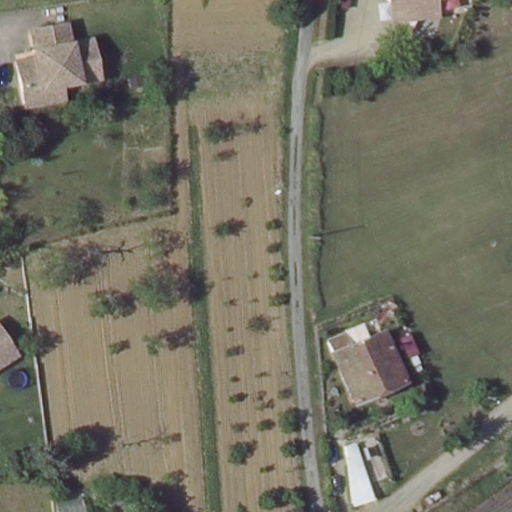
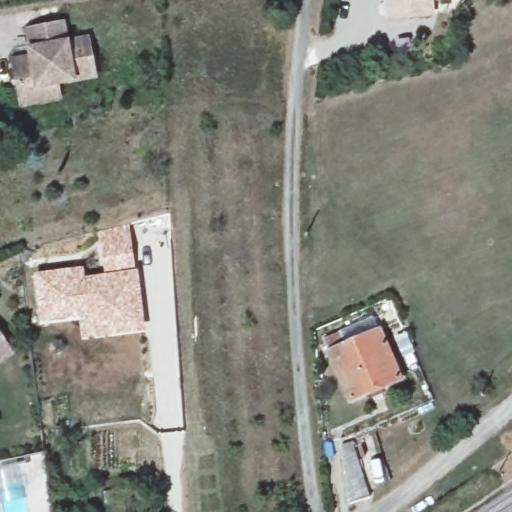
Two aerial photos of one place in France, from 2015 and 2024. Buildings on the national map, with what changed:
unchanged [(384,4),(384,0),(430,0),(431,17),(410,18),(386,20),(384,4)]
unchanged [(20,108),(17,93),(11,64),(31,60),(26,32),(60,26),(63,45),(85,41),(92,79),(54,86),(57,101),(20,108)]
new [(129,224),(137,267),(104,273),(97,230),(129,224)]
new [(84,265),(85,275),(104,273),(137,267),(146,331),(81,340),(78,318),(39,322),(34,271),(84,265)]
unchanged [(338,339),(344,350),(378,335),(401,380),(350,402),(322,346),(338,339)]
unchanged [(9,355),(0,360),(0,341),(9,355)]

